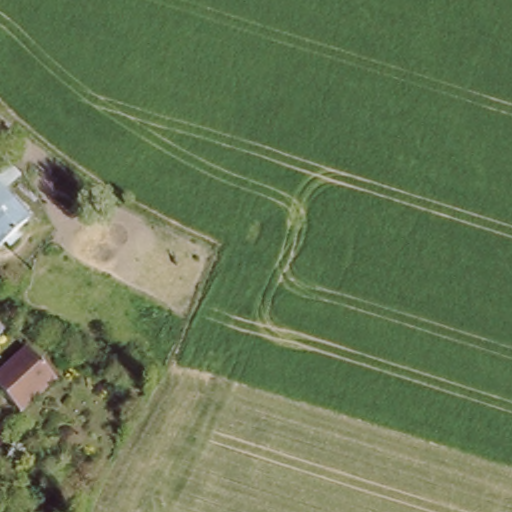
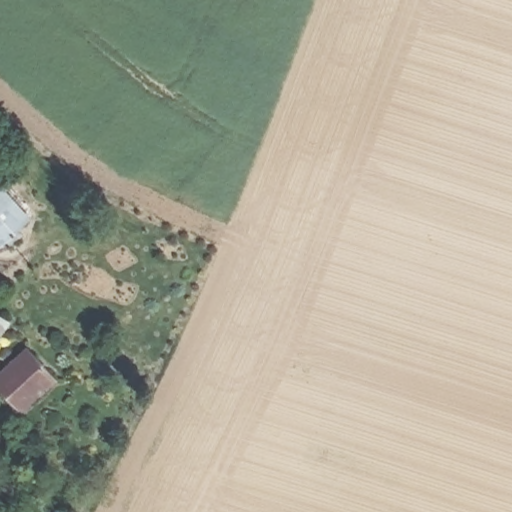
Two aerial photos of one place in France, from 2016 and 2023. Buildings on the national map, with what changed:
unchanged [(19,181),(43,207),(31,220),(0,186),(0,150),(23,176),(19,181)]
unchanged [(0,249),(0,248),(0,186),(31,220),(0,249)]
unchanged [(0,342),(0,317),(12,325),(0,342)]
unchanged [(57,381),(25,416),(0,393),(0,378),(25,350),(57,381)]

